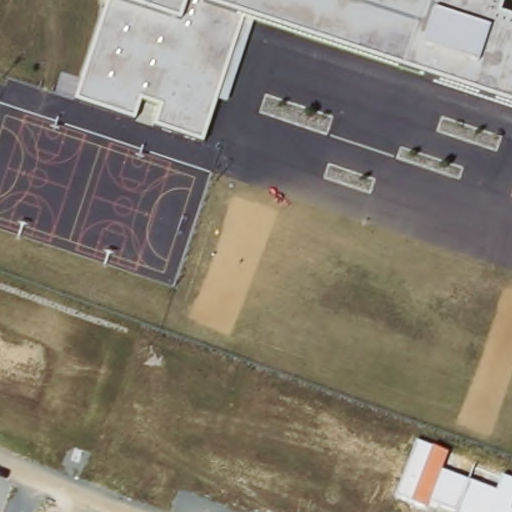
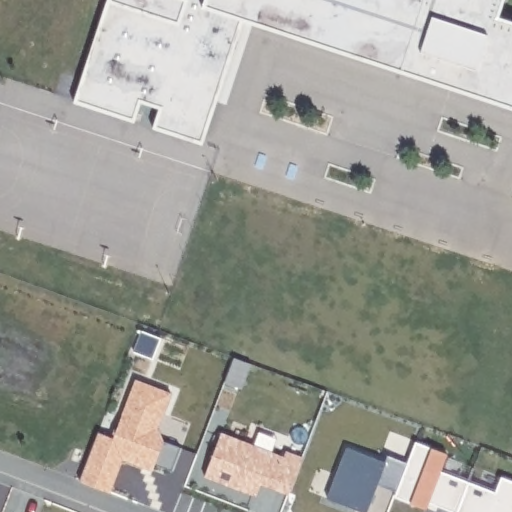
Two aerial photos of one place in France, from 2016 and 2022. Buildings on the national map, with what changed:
unchanged [(160,107),(140,101),(134,120),(75,100),(108,0),(504,0),(499,16),(512,20),(512,106),(254,22),(226,104),(215,101),(201,143),(155,126),(160,107)]
new [(142,466),(121,458),(109,491),(79,480),(97,431),(112,437),(135,378),(170,392),(156,427),(162,440),(180,446),(170,470),(154,463),(151,469),(142,466)]
new [(221,432),(283,456),(285,450),(302,456),(288,493),(260,482),(255,495),(204,475),(221,432)]
unchanged [(438,503),(437,509),(427,507),(397,495),(417,441),(447,452),(441,469),(495,491),(501,474),(512,479),(512,512),(459,512),(460,511),(438,503)]
new [(346,448),(385,462),(387,456),(408,464),(398,491),(376,484),(366,512),(327,498),(346,448)]

